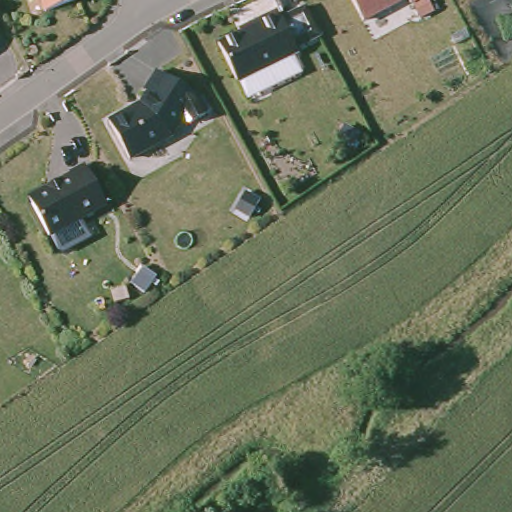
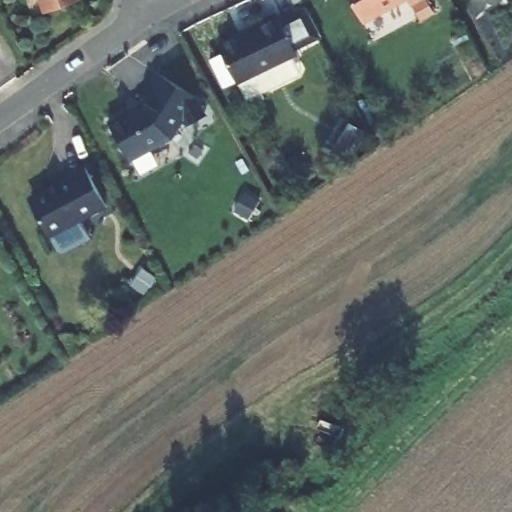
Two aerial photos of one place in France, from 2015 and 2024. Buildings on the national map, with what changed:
unchanged [(40,0),(79,0),(45,12),(40,0)]
unchanged [(350,0),(403,0),(362,22),(350,0)]
unchanged [(408,0),(418,0),(410,5),(408,0)]
unchanged [(218,45),(262,24),(261,21),(277,13),(297,54),(236,83),(218,45)]
unchanged [(108,122),(128,112),(129,114),(141,107),(140,106),(147,94),(145,92),(157,73),(195,97),(205,116),(188,125),(185,117),(182,118),(170,137),(128,160),(108,122)]
unchanged [(33,196),(70,177),(70,175),(85,167),(106,206),(48,237),(31,205),(33,196)]

